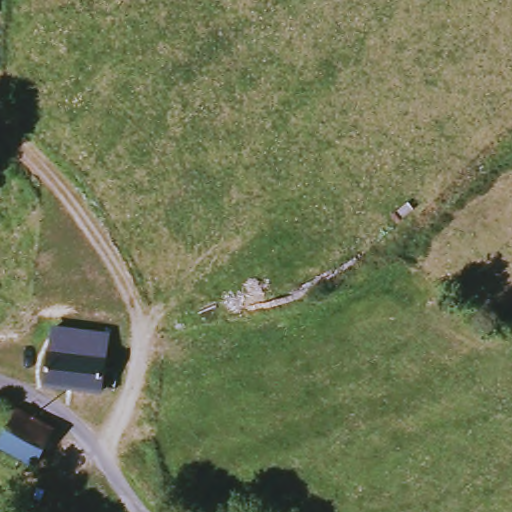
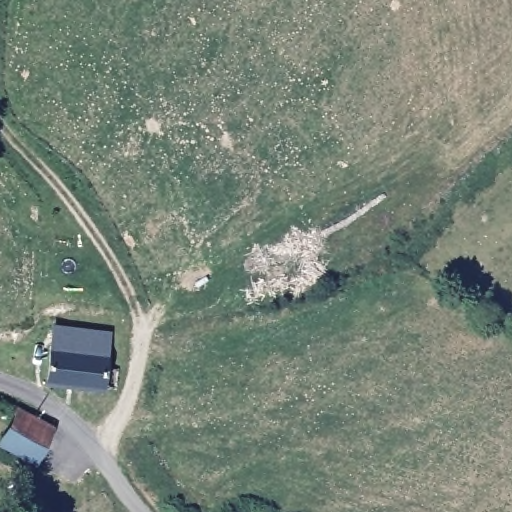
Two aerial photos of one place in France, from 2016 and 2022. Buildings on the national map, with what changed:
unchanged [(105,392),(105,394),(48,387),(53,347),(110,355),(107,368),(120,371),(117,393),(105,392)]
unchanged [(22,407),(60,427),(42,463),(3,444),(22,407)]

